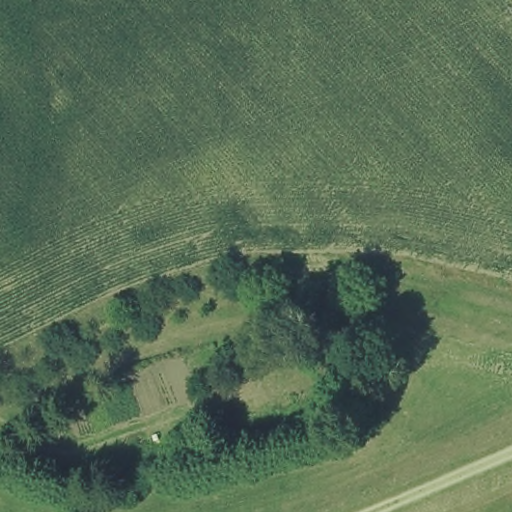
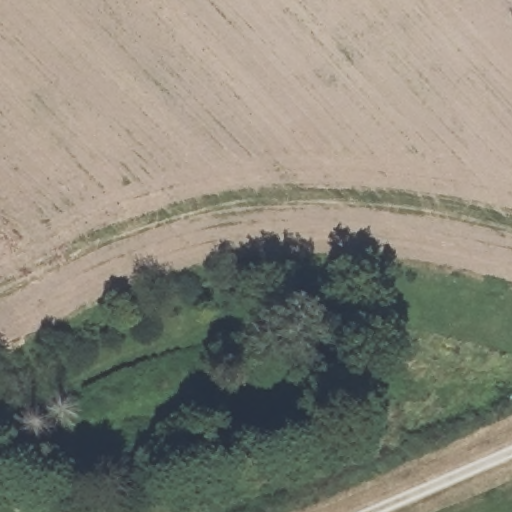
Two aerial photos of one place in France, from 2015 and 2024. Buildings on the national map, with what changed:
unchanged [(326,394),(333,428),(265,448),(257,413),(326,394)]

